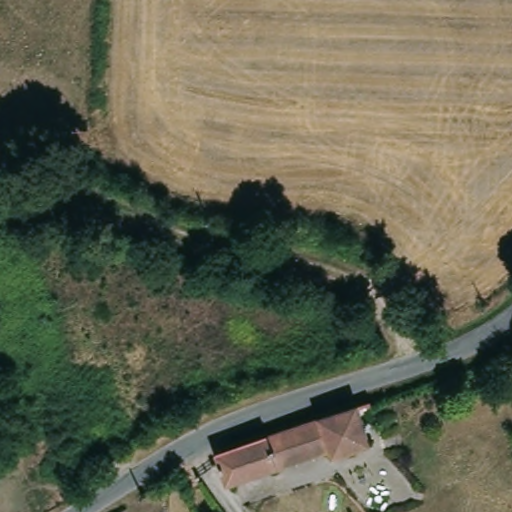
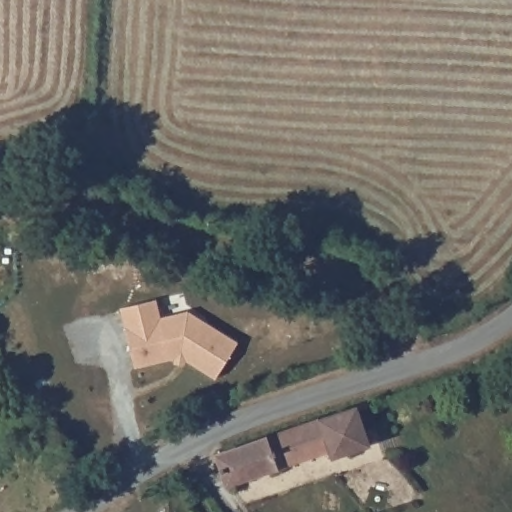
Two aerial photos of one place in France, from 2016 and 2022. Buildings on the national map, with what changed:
new [(132,377),(118,318),(153,309),(157,327),(184,320),(234,351),(212,387),(182,369),(181,374),(171,372),(172,367),(132,377)]
unchanged [(366,402),(371,416),(357,421),(366,443),(329,457),(327,451),(225,489),(210,460),(366,402)]

